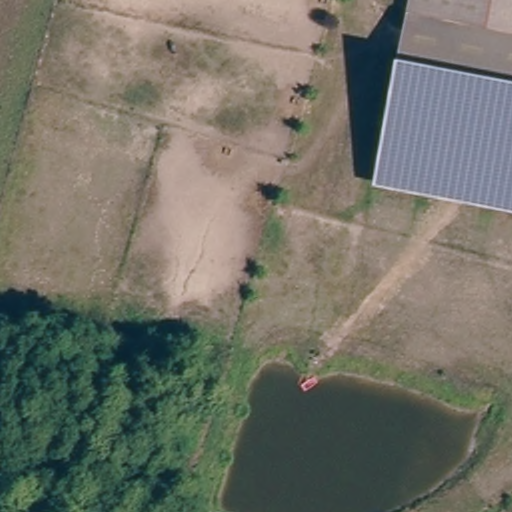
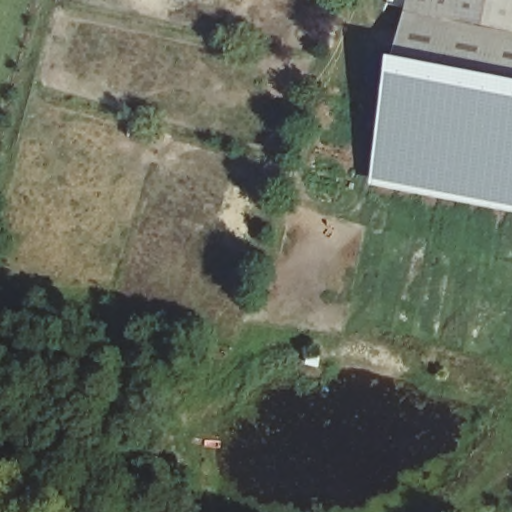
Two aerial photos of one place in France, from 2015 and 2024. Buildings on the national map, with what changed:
unchanged [(512,34),(407,17),(410,0),(512,0),(512,34)]
unchanged [(405,21),(512,37),(512,192),(382,172),(405,21)]
unchanged [(512,211),(380,190),(382,172),(512,192),(512,211)]

